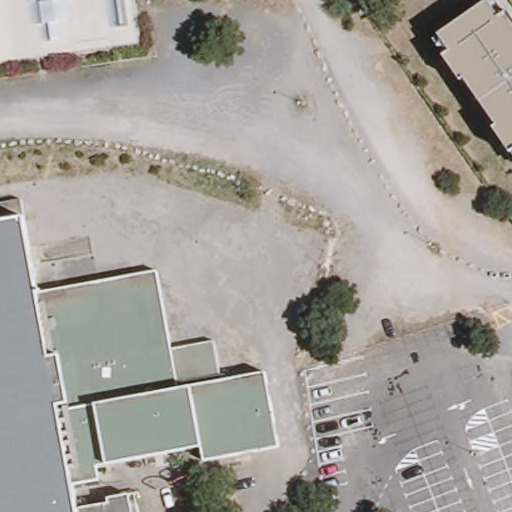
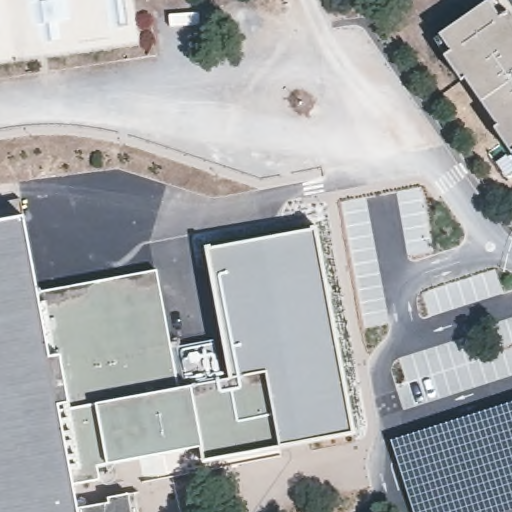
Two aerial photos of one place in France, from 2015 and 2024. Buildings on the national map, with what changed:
unchanged [(511,153),(444,60),(449,55),(437,39),(487,2),(498,20),(507,15),(512,22),(512,155),(511,153)]
unchanged [(23,218),(38,293),(157,271),(172,350),(214,341),(221,381),(267,372),(281,446),(205,460),(203,445),(108,464),(97,466),(100,479),(73,485),(78,510),(110,503),(109,497),(129,494),(135,493),(138,512),(0,512),(0,204),(19,200),(23,218)]
new [(317,228),(356,435),(281,446),(267,372),(266,372),(231,379),(206,249),(317,228)]

